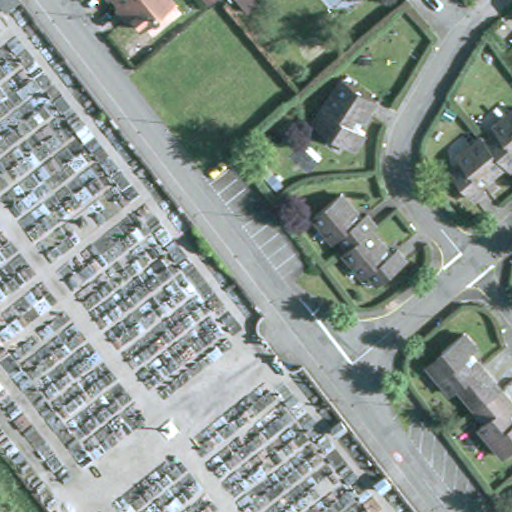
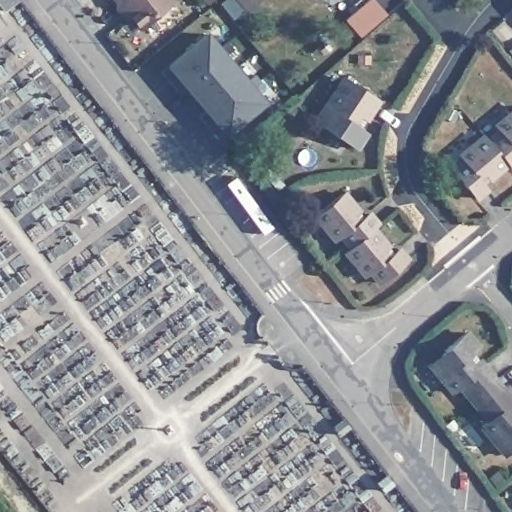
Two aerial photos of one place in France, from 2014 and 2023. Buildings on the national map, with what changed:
unchanged [(0,9),(0,0),(16,0),(2,11),(0,9)]
unchanged [(110,2),(109,0),(112,0),(110,2)]
unchanged [(116,0),(168,0),(174,7),(147,28),(141,32),(116,0)]
new [(218,133),(211,124),(202,115),(207,111),(216,120),(190,89),(184,93),(177,84),(170,76),(165,70),(170,66),(207,34),(220,49),(228,41),(234,48),(225,54),(248,81),(256,75),(261,81),(253,87),(265,102),(227,134),(222,139),(218,133)]
unchanged [(345,77),(378,98),(361,126),(367,130),(356,148),(317,121),(345,77)]
unchanged [(488,139),(499,130),(496,126),(512,112),(512,165),(511,166),(507,162),(488,139)]
unchanged [(507,162),(482,183),(487,187),(475,196),(454,170),(464,161),(460,156),(485,135),(488,139),(507,162)]
unchanged [(337,239),(316,214),(343,191),(362,215),(368,211),(379,224),(374,227),(350,246),(342,235),(337,239)]
unchanged [(393,252),(399,247),(409,259),(381,282),(372,270),(366,275),(346,251),(350,246),(374,227),(393,252)]
unchanged [(508,456),(484,426),(490,421),(479,408),(470,397),(462,387),(454,393),(430,363),(466,334),(479,349),(473,354),(493,378),(502,389),(512,399),(512,453),(508,456)]

